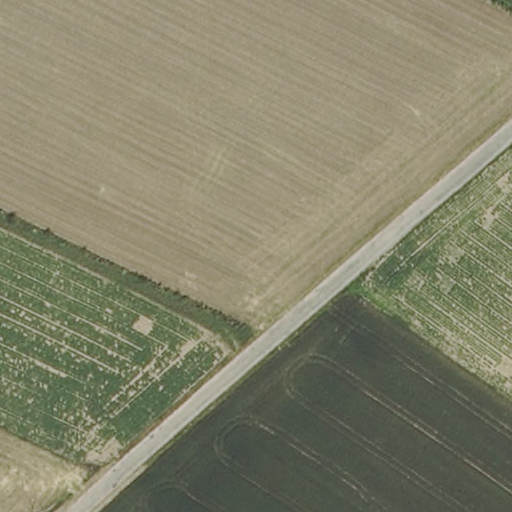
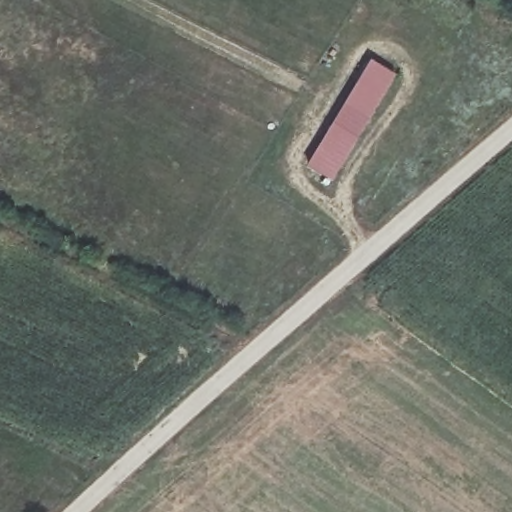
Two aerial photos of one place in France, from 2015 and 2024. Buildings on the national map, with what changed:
new [(329,179),(305,164),(369,58),(394,74),(329,179)]

